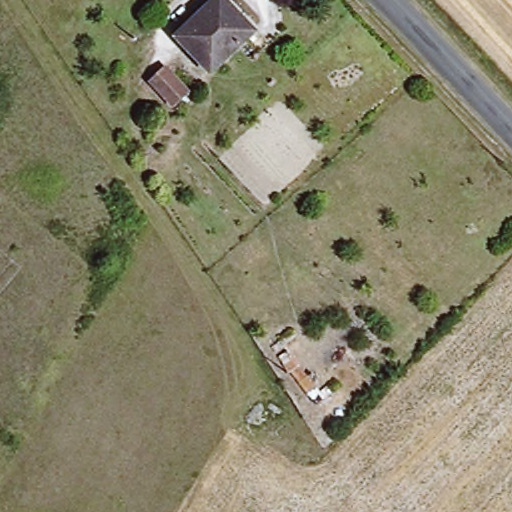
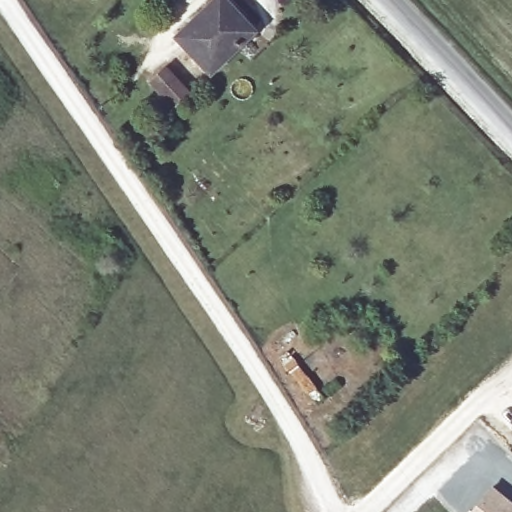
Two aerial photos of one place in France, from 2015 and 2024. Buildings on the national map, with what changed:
unchanged [(251,30),(215,66),(185,36),(220,0),(251,30)]
unchanged [(159,69),(176,50),(201,75),(185,92),(159,69)]
new [(512,506),(512,512),(471,512),(491,488),(512,506)]

